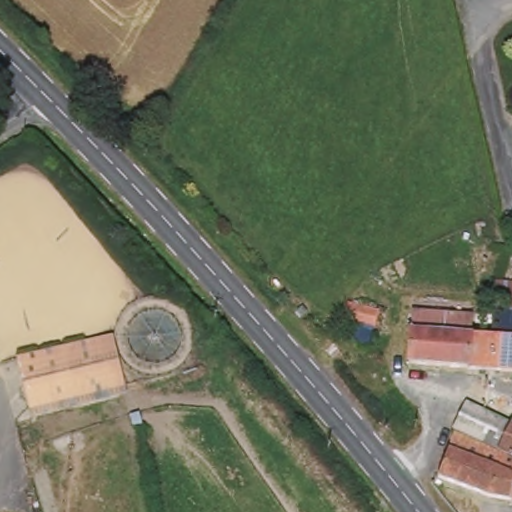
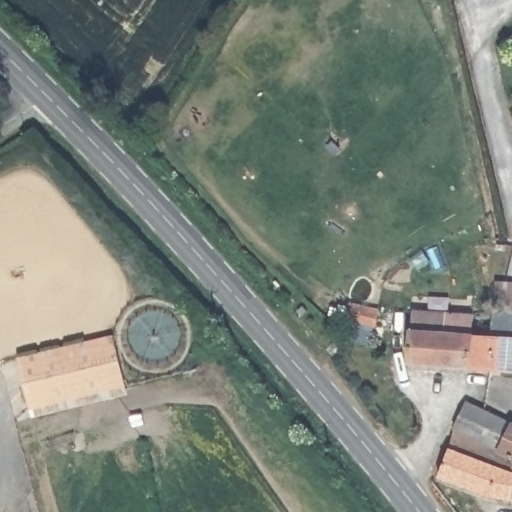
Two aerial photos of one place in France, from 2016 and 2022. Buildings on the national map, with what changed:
unchanged [(407,318),(467,320),(467,331),(488,332),(492,316),(493,279),(512,280),(512,373),(467,372),(405,370),(407,325),(407,318)]
unchanged [(361,321),(336,314),(338,299),(364,306),(361,321)]
unchanged [(127,393),(32,411),(23,363),(119,346),(127,393)]
unchanged [(512,429),(512,460),(502,456),(454,433),(468,408),(512,429)]
unchanged [(482,501),(436,482),(454,433),(502,456),(512,460),(512,500),(482,501)]

